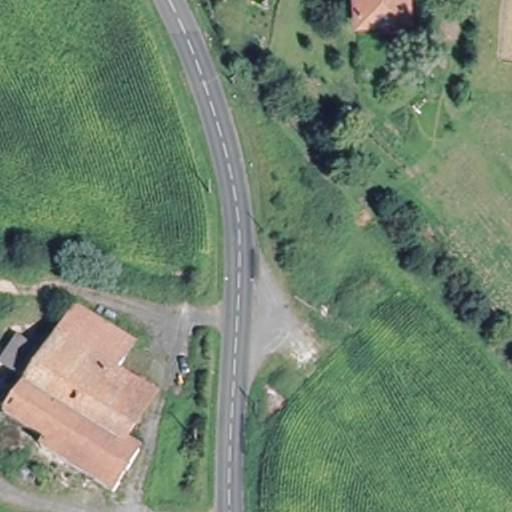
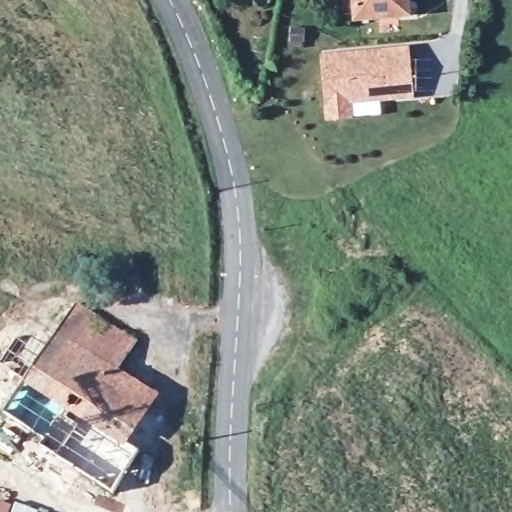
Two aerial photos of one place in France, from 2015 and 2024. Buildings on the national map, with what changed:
unchanged [(356,18),(354,0),(404,0),(406,14),(356,18)]
new [(410,45),(415,99),(353,104),(354,119),(326,122),(321,55),(410,45)]
unchanged [(17,342),(41,355),(69,305),(131,346),(115,372),(151,394),(124,442),(140,453),(116,493),(39,449),(39,443),(3,421),(27,381),(2,366),(17,342)]

